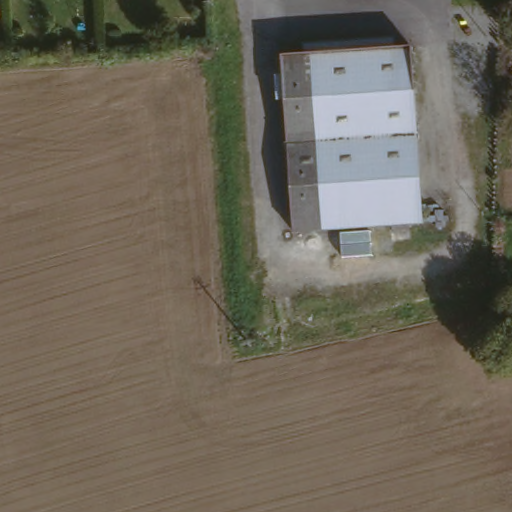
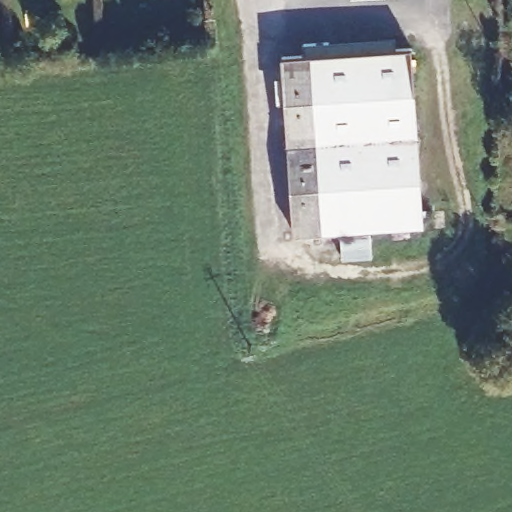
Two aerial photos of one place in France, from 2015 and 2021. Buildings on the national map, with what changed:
unchanged [(307,42),(396,36),(397,52),(308,56),(307,42)]
unchanged [(308,56),(397,52),(413,52),(421,222),(416,223),(349,227),(293,231),(285,57),(308,56)]

